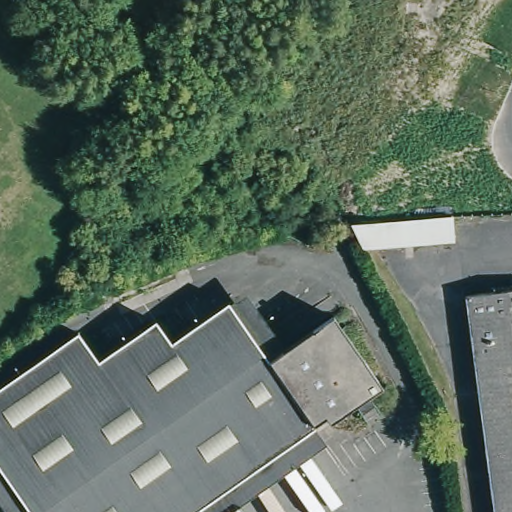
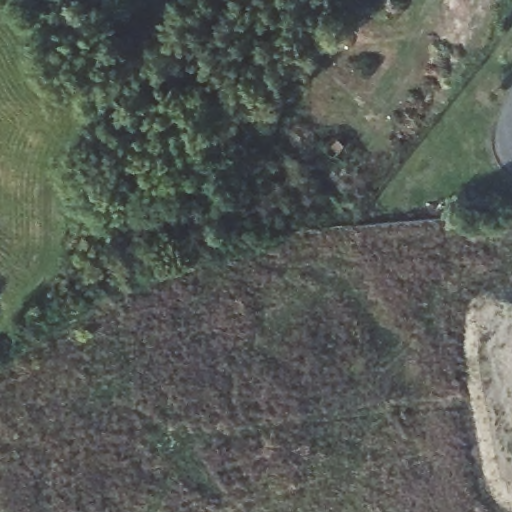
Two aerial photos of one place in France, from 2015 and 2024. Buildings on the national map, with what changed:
demolished [(452,217),(453,243),(363,251),(350,224),(452,217)]
demolished [(512,289),(512,512),(494,512),(464,295),(512,289)]
demolished [(0,471),(1,470),(0,469),(0,396),(83,338),(104,366),(161,327),(176,347),(236,306),(237,308),(278,364),(291,355),(338,321),(388,392),(336,430),(331,423),(319,431),(322,435),(294,454),(212,512),(27,512),(4,481),(0,474),(0,471)]

